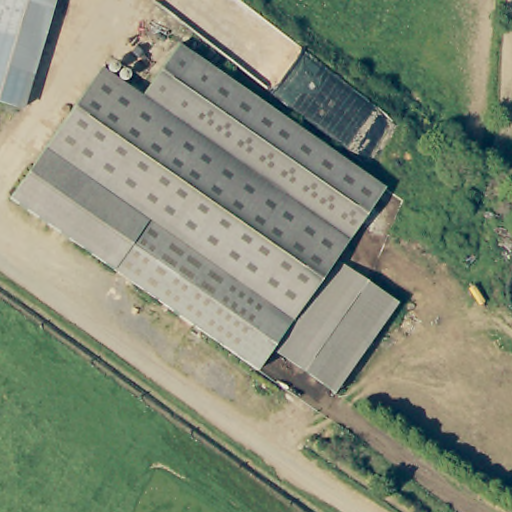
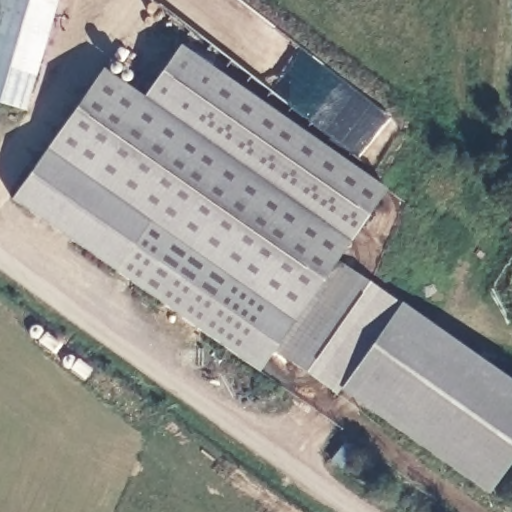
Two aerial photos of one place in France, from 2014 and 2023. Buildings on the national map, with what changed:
unchanged [(0,101),(0,0),(56,0),(20,107),(0,101)]
unchanged [(250,367),(10,193),(102,65),(144,95),(180,43),(380,189),(327,262),(282,323),(263,349),(250,367)]
new [(335,396),(266,345),(282,323),(327,262),(331,256),(399,302),(512,382),(512,456),(485,493),(339,390),(335,396)]

